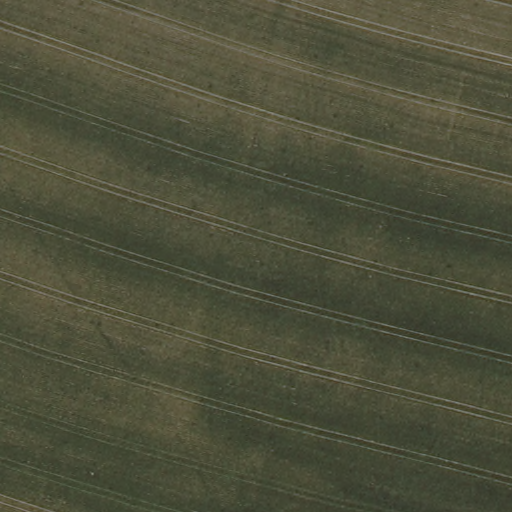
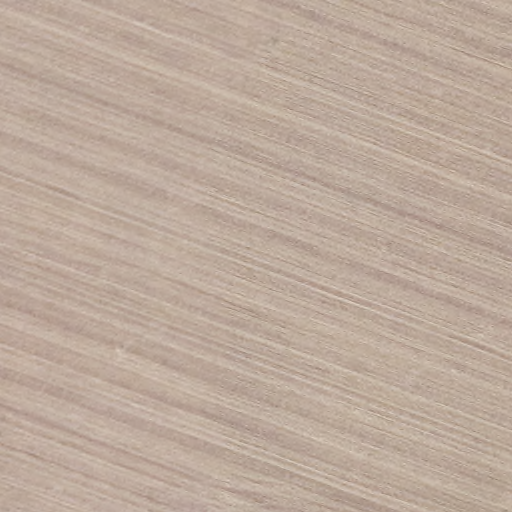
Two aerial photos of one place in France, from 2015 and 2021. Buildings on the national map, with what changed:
[]

